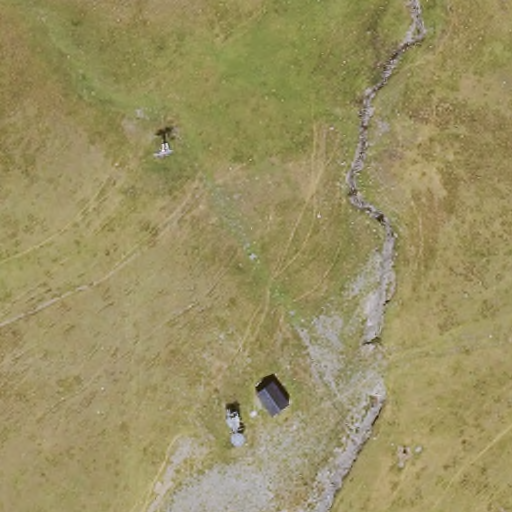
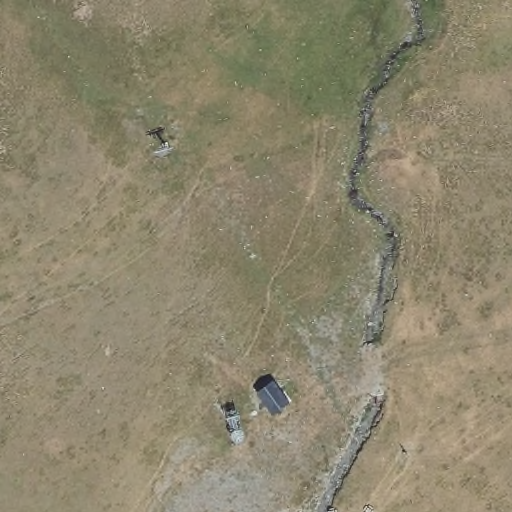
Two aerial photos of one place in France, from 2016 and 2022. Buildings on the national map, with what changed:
unchanged [(257,392),(277,379),(293,402),(272,413),(257,392)]

